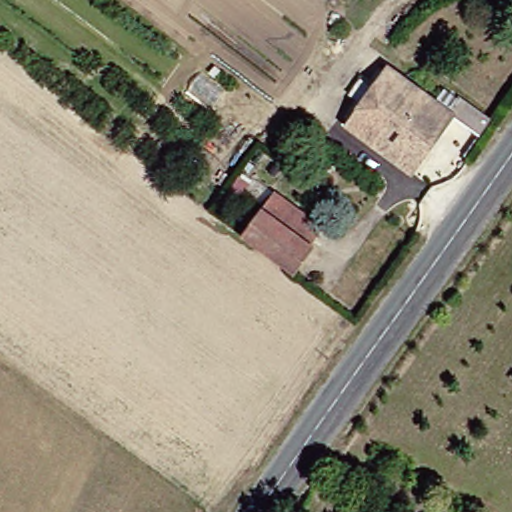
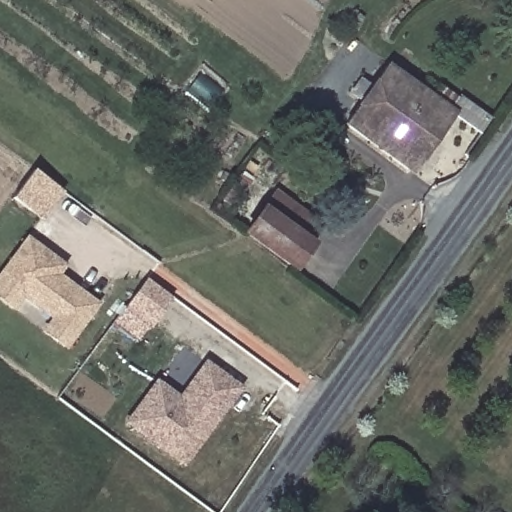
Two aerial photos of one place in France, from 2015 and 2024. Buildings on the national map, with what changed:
unchanged [(409,170),(344,125),(366,91),(350,79),(369,53),(450,110),(409,170)]
new [(39,168),(66,189),(55,204),(44,217),(17,195),(27,182),(39,168)]
unchanged [(291,262),(241,229),(261,199),(311,232),(291,262)]
new [(20,250),(32,235),(67,263),(60,272),(70,280),(99,303),(67,343),(47,328),(56,315),(25,291),(16,303),(0,291),(0,277),(9,265),(20,250)]
new [(151,278),(175,297),(154,324),(130,306),(151,278)]
new [(162,445),(130,422),(159,382),(182,398),(208,363),(242,387),(228,406),(223,413),(205,438),(186,463),(162,445)]

